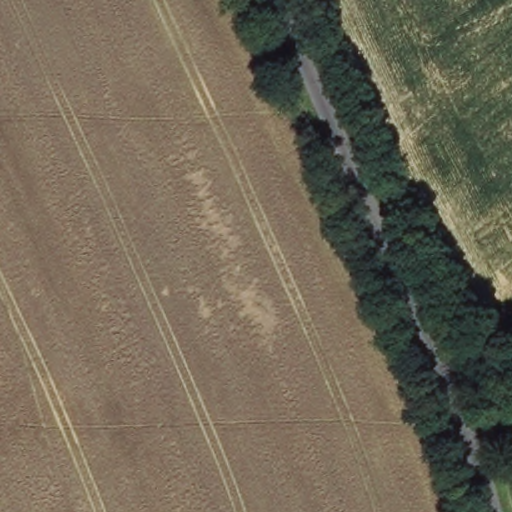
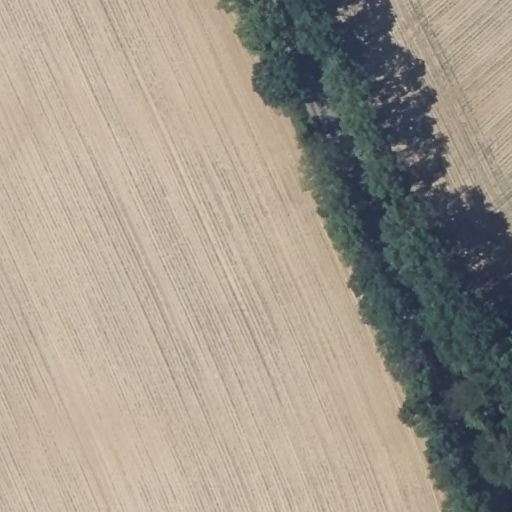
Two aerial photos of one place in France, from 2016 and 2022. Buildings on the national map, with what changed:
[]

